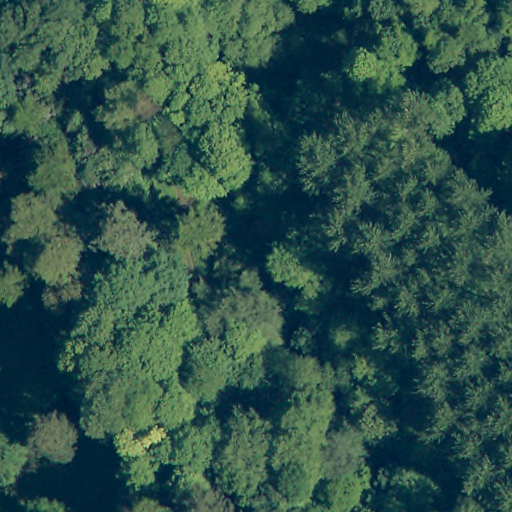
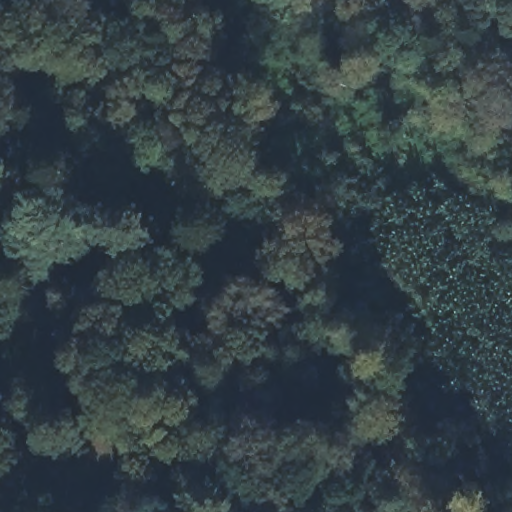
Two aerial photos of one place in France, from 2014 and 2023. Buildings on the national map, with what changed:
unchanged [(275,232),(261,239),(252,219),(267,212),(275,232)]

